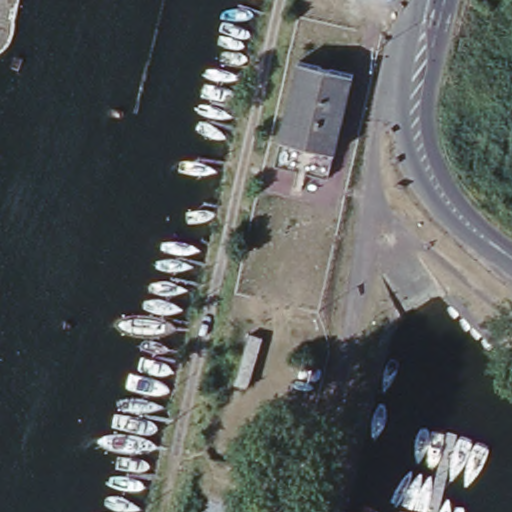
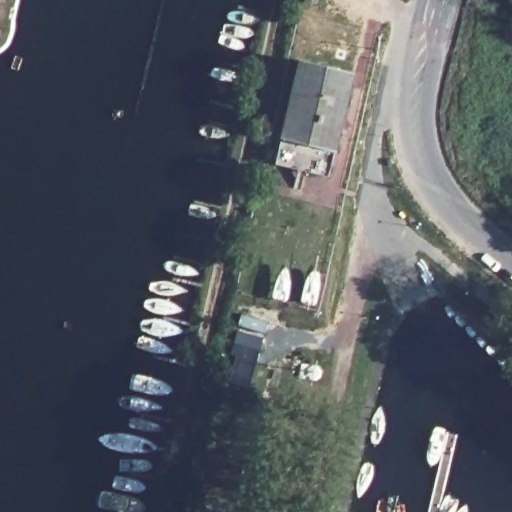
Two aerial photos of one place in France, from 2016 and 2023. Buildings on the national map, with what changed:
unchanged [(305,52),(357,66),(334,167),(280,154),(305,52)]

